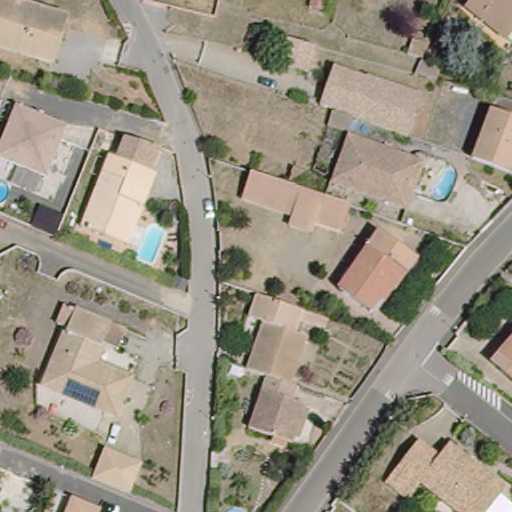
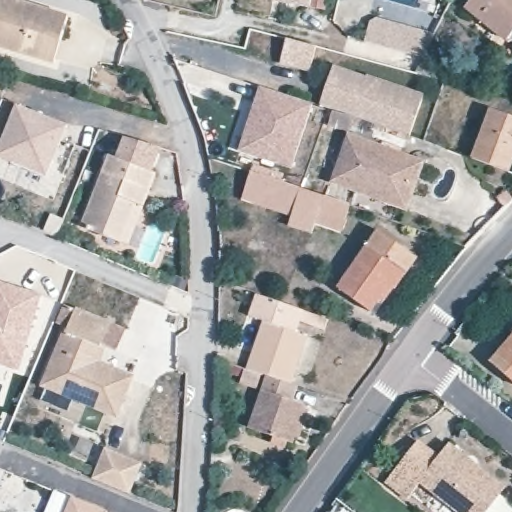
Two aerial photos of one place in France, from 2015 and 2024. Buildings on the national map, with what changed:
unchanged [(0,45),(0,0),(15,0),(66,15),(60,39),(53,61),(39,56),(0,45)]
new [(308,5),(268,0),(309,0),(308,5)]
unchanged [(309,0),(325,0),(322,14),(306,10),(309,0)]
unchanged [(504,37),(466,5),(469,0),(512,0),(512,27),(504,37)]
new [(434,35),(423,58),(366,42),(371,21),(379,17),(434,35)]
unchanged [(308,73),(278,65),(284,40),(314,48),(308,73)]
unchanged [(319,101),(331,61),(365,73),(366,71),(423,90),(409,131),(364,116),(353,112),(348,126),(331,122),(334,106),(319,101)]
new [(268,91),(315,106),(295,171),(252,157),(248,156),(261,110),(268,91)]
unchanged [(48,176),(0,158),(0,151),(15,105),(65,123),(48,176)]
unchanged [(512,116),(512,163),(509,172),(470,159),(490,109),(512,116)]
unchanged [(409,205),(339,181),(331,179),(347,130),(357,134),(425,157),(409,205)]
unchanged [(121,242),(81,226),(109,153),(119,156),(126,137),(159,151),(153,170),(158,172),(144,207),(130,245),(121,242)]
unchanged [(334,196),(346,201),(337,227),(311,217),(308,227),(285,219),(289,209),(243,193),(251,168),(298,184),(320,191),(326,194),(334,196)]
unchanged [(407,278),(399,272),(371,312),(339,291),(377,233),(420,260),(407,278)]
new [(19,372),(0,366),(0,280),(43,294),(19,372)]
unchanged [(261,322),(248,317),(256,295),(325,318),(323,328),(294,320),(291,332),(261,322)]
unchanged [(68,330),(58,326),(66,306),(76,310),(114,326),(129,332),(121,352),(106,345),(99,365),(133,379),(117,418),(75,400),(44,387),(48,380),(68,330)]
unchanged [(288,383),(264,375),(244,368),(261,322),(291,332),(303,336),(288,383)]
unchanged [(494,363),(512,341),(512,378),(494,363)]
unchanged [(304,408),(290,445),(246,430),(264,375),(288,383),(297,387),(291,403),(304,408)]
unchanged [(479,512),(456,512),(415,480),(403,496),(381,479),(413,438),(434,454),(444,441),(500,485),(495,491),(479,512)]
unchanged [(97,442),(146,464),(134,496),(91,480),(97,442)]
unchanged [(505,512),(479,512),(495,491),(511,504),(505,512)]
unchanged [(93,507),(92,512),(64,512),(69,497),(93,507)]

